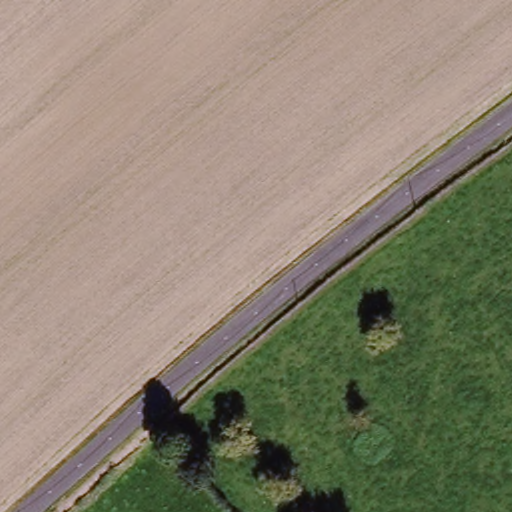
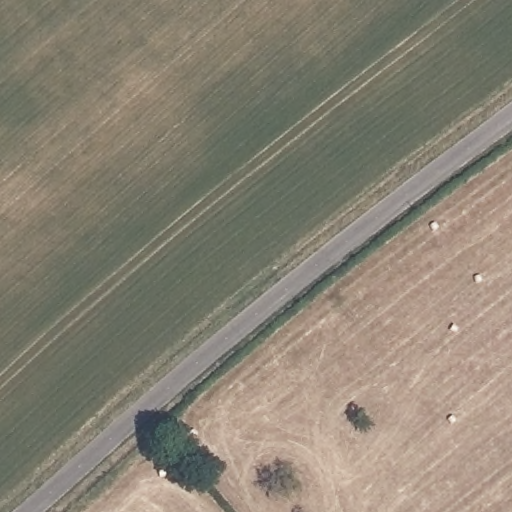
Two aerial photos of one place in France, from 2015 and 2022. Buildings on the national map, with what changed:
[]

